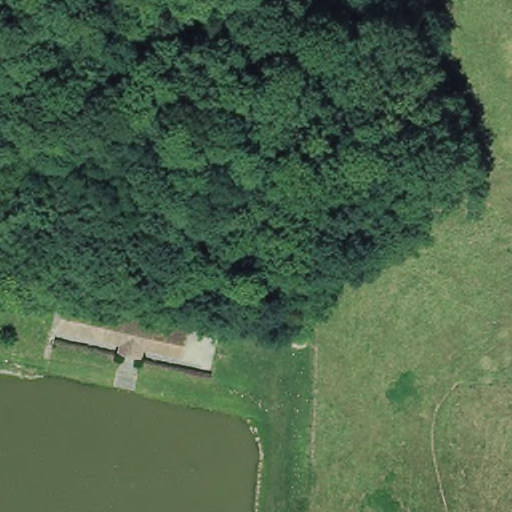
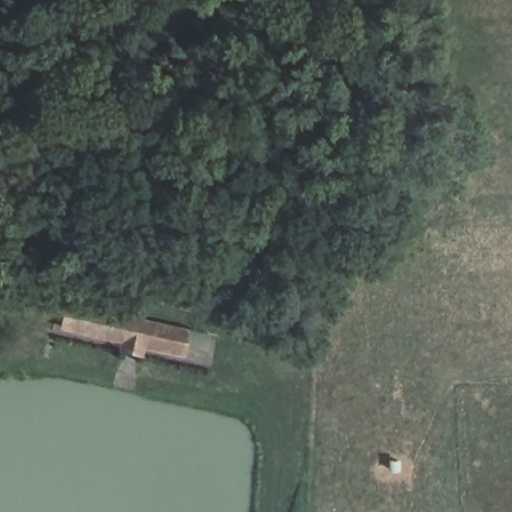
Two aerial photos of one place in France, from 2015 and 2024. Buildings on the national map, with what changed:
unchanged [(72,287),(196,312),(190,360),(146,350),(144,359),(117,353),(119,341),(64,332),(72,287)]

